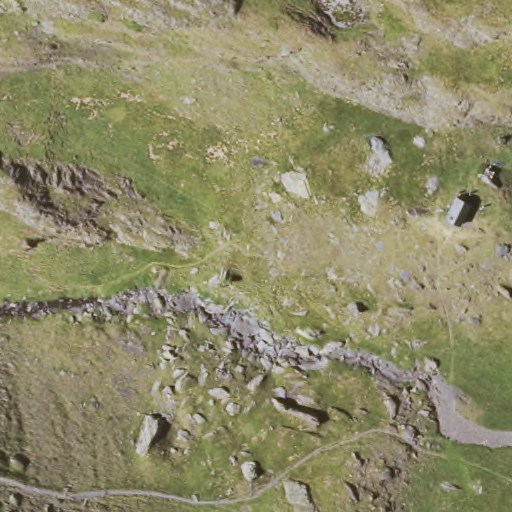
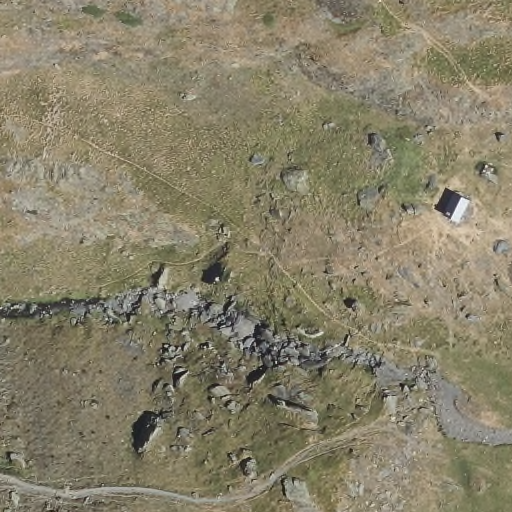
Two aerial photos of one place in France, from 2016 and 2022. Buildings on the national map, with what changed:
unchanged [(465,191),(459,203),(452,215),(432,204),(445,180),(465,191)]

